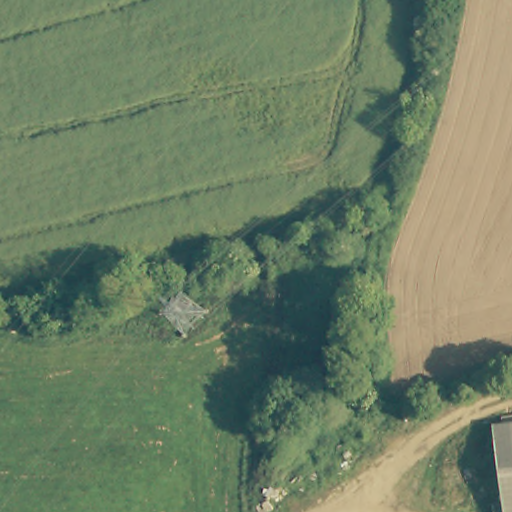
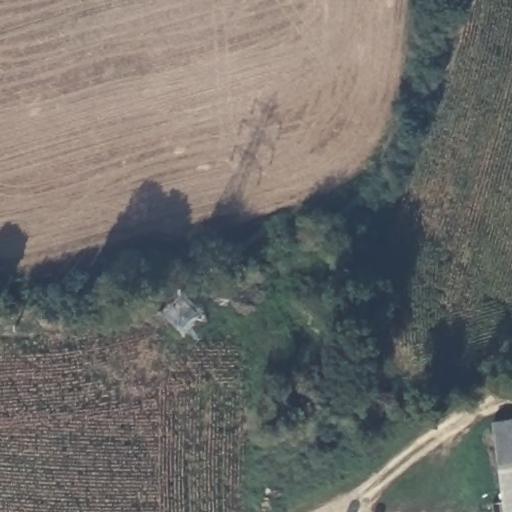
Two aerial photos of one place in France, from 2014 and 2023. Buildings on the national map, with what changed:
unchanged [(501,512),(488,424),(512,420),(512,512),(501,512)]

